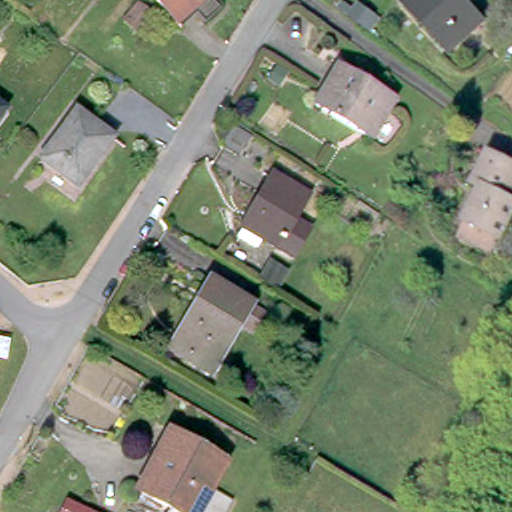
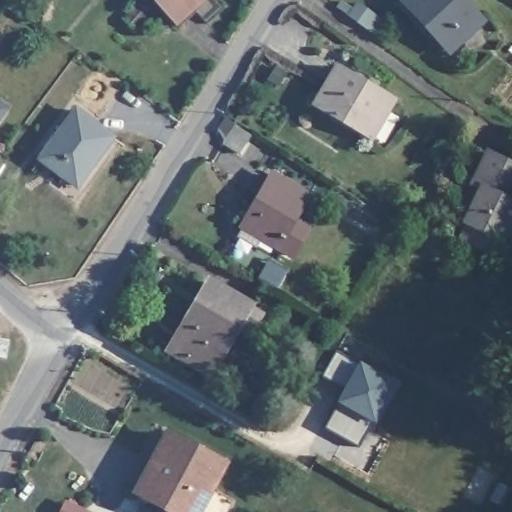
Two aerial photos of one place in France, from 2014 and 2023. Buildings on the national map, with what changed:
unchanged [(202,0),(177,23),(157,0),(202,0)]
unchanged [(403,0),(463,0),(482,21),(450,51),(403,0)]
unchanged [(370,30),(367,28),(350,18),(358,4),(375,16),(378,19),(370,30)]
unchanged [(377,143),(321,110),(344,72),(400,104),(377,143)]
unchanged [(0,117),(0,105),(5,109),(0,117)]
unchanged [(77,186),(41,159),(77,110),(113,137),(77,186)]
unchanged [(240,154),(224,144),(225,141),(218,128),(225,118),(235,128),(250,137),(240,154)]
unchanged [(482,189),(473,184),(488,153),(512,164),(512,197),(510,200),(512,201),(512,219),(502,239),(494,253),(493,254),(460,239),(463,231),(466,222),(482,189)]
unchanged [(240,232),(245,223),(244,222),(273,170),(307,190),(293,214),(310,224),(294,251),(262,233),(257,243),(240,232)]
unchanged [(277,281),(261,272),(270,256),(286,265),(277,281)]
unchanged [(169,346),(206,283),(245,305),(255,312),(257,317),(249,329),(244,330),(233,324),(203,378),(178,363),(164,354),(169,346)]
unchanged [(10,342),(7,359),(0,357),(0,340),(10,342)]
new [(360,364),(397,384),(374,424),(358,446),(325,427),(337,403),(345,387),(324,376),(337,352),(360,364)]
unchanged [(204,479),(226,491),(215,512),(158,512),(162,506),(128,488),(159,429),(215,459),(204,479)]
unchanged [(68,512),(57,512),(60,508),(68,512)]

